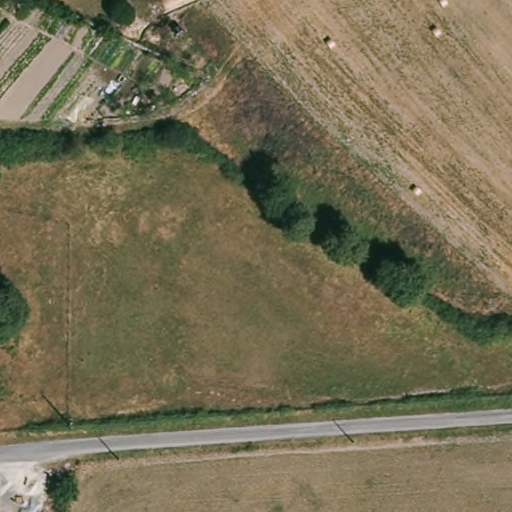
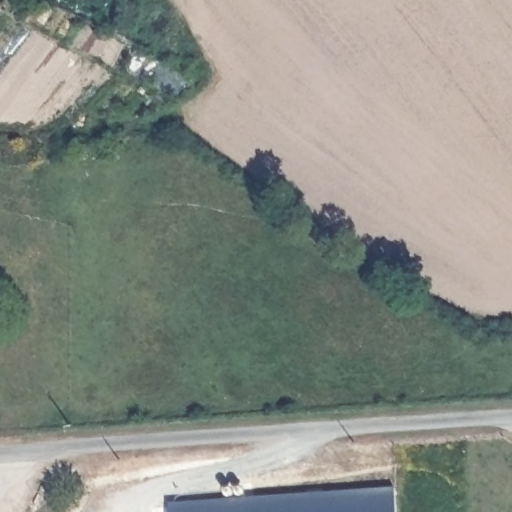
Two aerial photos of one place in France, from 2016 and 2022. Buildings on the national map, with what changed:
new [(394,486),(396,512),(168,512),(167,504),(394,486)]

